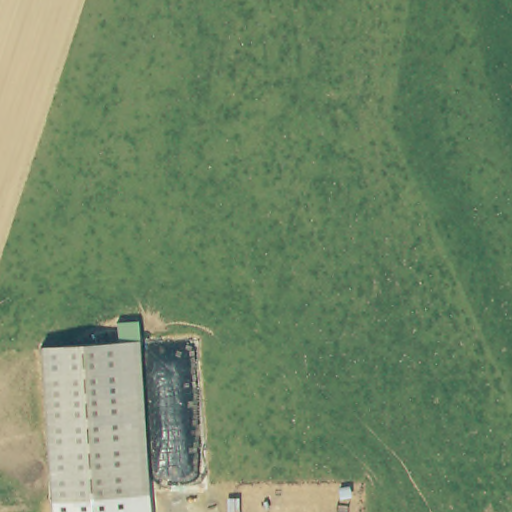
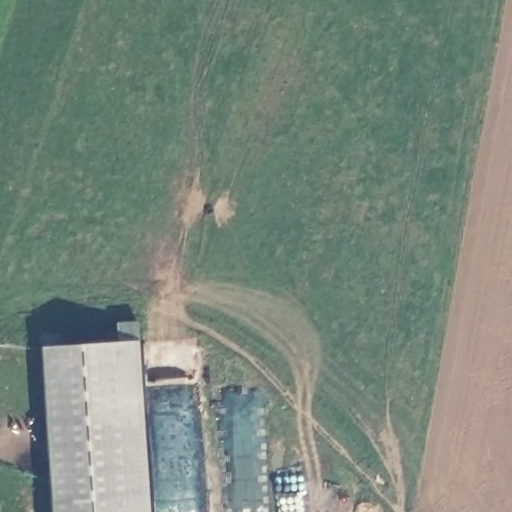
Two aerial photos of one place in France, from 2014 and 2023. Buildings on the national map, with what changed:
unchanged [(139,340),(149,512),(52,512),(40,346),(139,340)]

